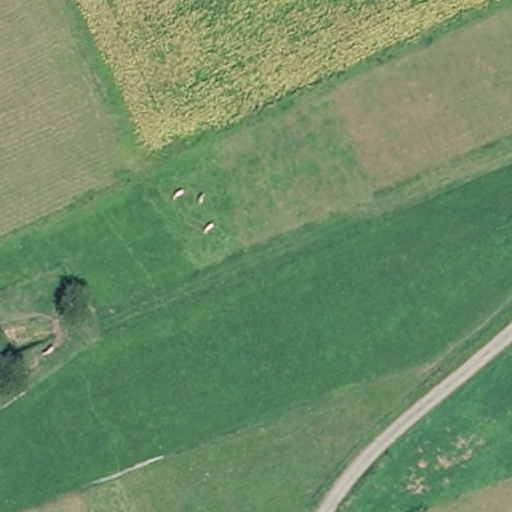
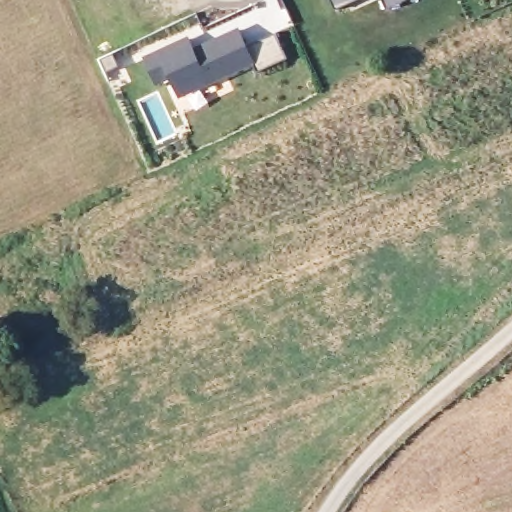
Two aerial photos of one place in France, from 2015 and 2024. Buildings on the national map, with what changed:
new [(335,10),(331,0),(359,0),(335,10)]
new [(387,11),(382,0),(409,0),(387,11)]
new [(286,58),(257,71),(252,61),(181,94),(172,75),(158,82),(147,59),(189,40),(196,57),(206,52),(204,47),(237,31),(246,47),(275,33),(286,58)]

